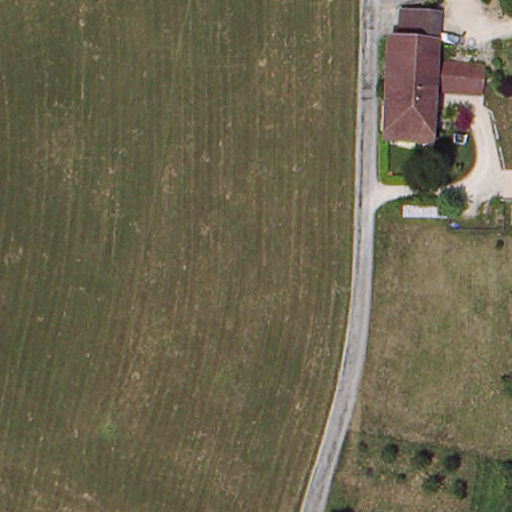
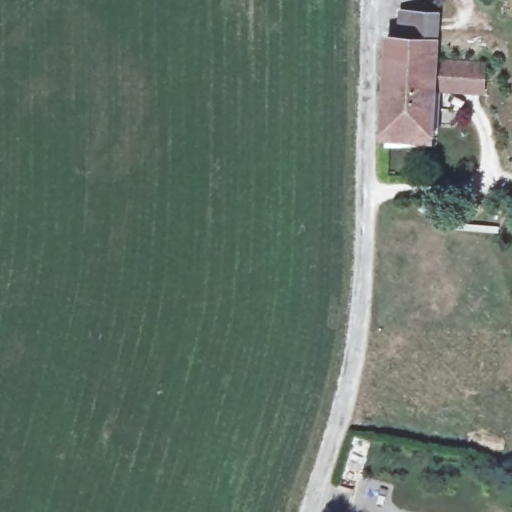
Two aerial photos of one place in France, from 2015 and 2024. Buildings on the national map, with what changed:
unchanged [(412,16),(446,18),(445,46),(440,46),(409,45),(412,16)]
unchanged [(418,139),(392,137),(396,44),(409,45),(440,46),(445,46),(444,65),(491,69),(490,96),(441,94),(438,127),(437,140),(418,139)]

